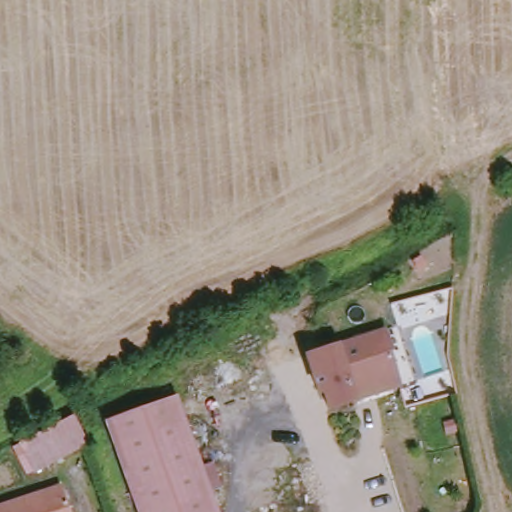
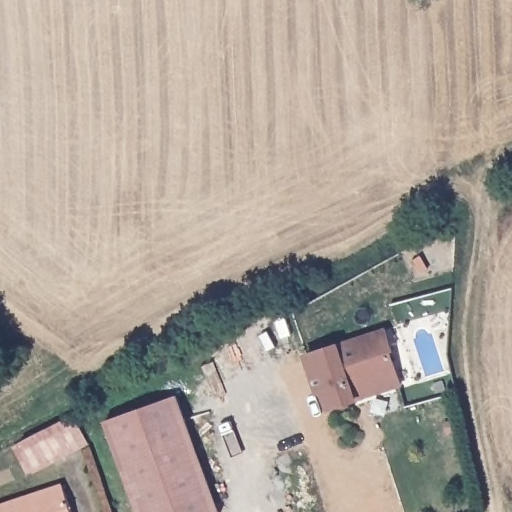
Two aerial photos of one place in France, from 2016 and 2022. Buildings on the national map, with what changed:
unchanged [(401,385),(356,397),(328,405),(324,388),(318,389),(309,350),(386,327),(397,373),(374,378),(397,373),(401,385)]
unchanged [(216,512),(137,512),(105,418),(175,393),(216,512)]
unchanged [(75,418),(88,446),(25,478),(11,446),(75,418)]
unchanged [(70,512),(0,512),(0,501),(60,482),(70,512)]

